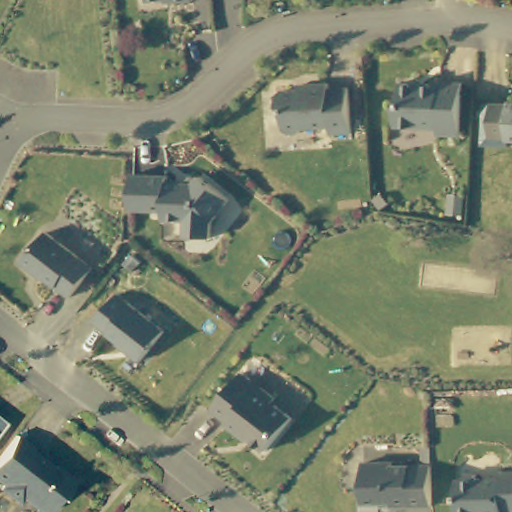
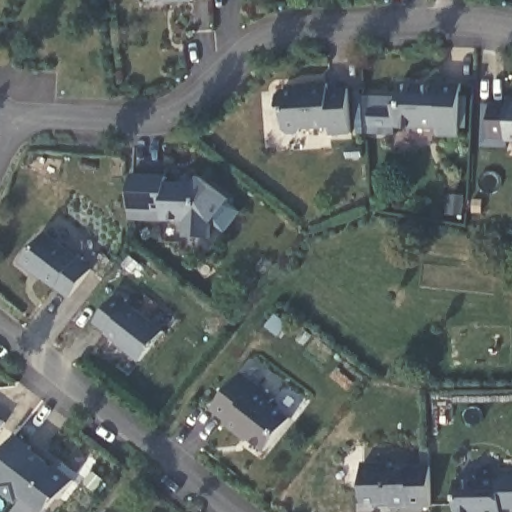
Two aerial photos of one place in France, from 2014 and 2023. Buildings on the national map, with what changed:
unchanged [(177,0),(189,0),(177,1),(177,0)]
unchanged [(434,136),(434,129),(392,127),(392,104),(395,104),(395,83),(435,84),(435,82),(458,82),(456,121),(455,137),(434,136)]
unchanged [(323,89),(345,88),(347,135),(326,135),(326,127),(297,129),(294,133),(285,134),(280,129),(279,111),(274,106),(274,96),(278,91),(304,90),(303,85),(323,84),(323,89)]
unchanged [(512,104),(512,145),(487,144),(489,102),(497,103),(512,104)]
unchanged [(174,182),(175,183),(182,175),(187,179),(191,175),(220,197),(202,220),(202,236),(178,235),(178,220),(156,219),(156,210),(122,209),(123,174),(124,174),(158,175),(158,181),(174,182)]
unchanged [(46,232),(93,269),(71,297),(46,277),(45,278),(24,262),(46,232)]
unchanged [(119,344),(120,343),(95,321),(116,294),(164,331),(141,361),(119,344)]
unchanged [(246,432),(245,435),(230,423),(232,421),(216,408),(245,372),(278,398),(275,402),(295,418),(270,451),(246,432)]
unchanged [(0,433),(0,418),(7,424),(0,433)]
unchanged [(49,504),(38,505),(22,493),(18,499),(0,485),(0,482),(2,480),(0,478),(0,452),(3,448),(16,431),(33,443),(31,445),(46,457),(45,459),(51,465),(54,461),(75,476),(61,495),(58,493),(49,504)]
unchanged [(355,463),(386,462),(386,467),(425,466),(426,507),(385,508),(385,505),(357,505),(355,463)]
unchanged [(452,511),(452,481),(455,481),(459,476),(470,476),(475,480),(496,480),(496,475),(512,474),(512,512),(498,512),(452,512),(452,511)]

